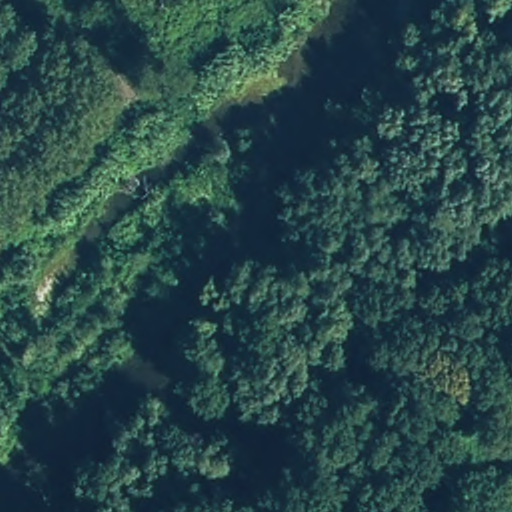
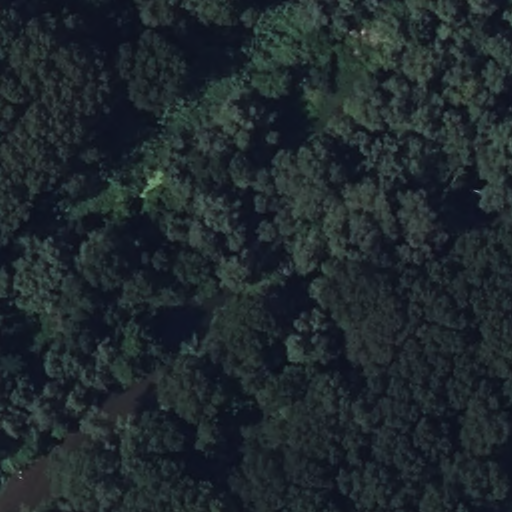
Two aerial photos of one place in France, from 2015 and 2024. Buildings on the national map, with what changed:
[]

